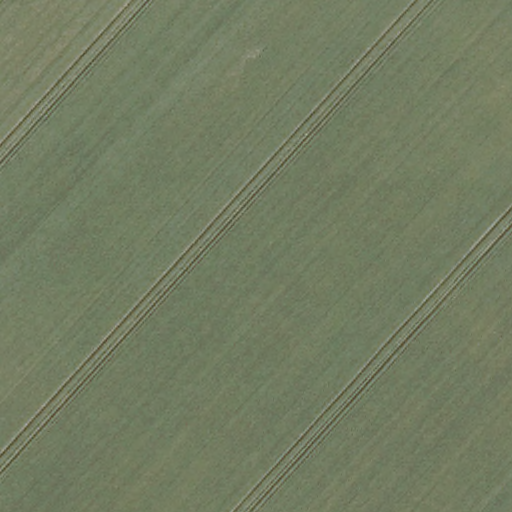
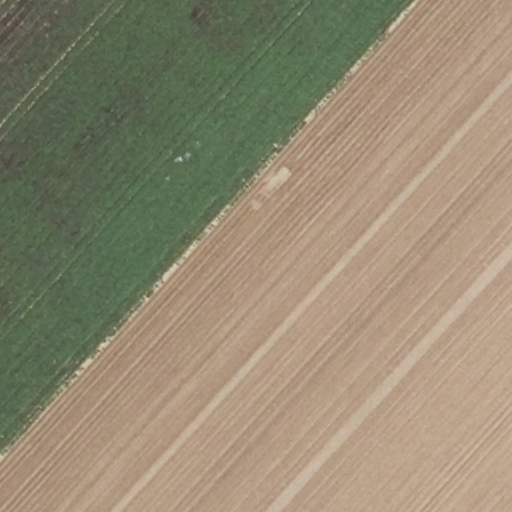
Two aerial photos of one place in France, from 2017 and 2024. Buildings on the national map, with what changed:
[]

